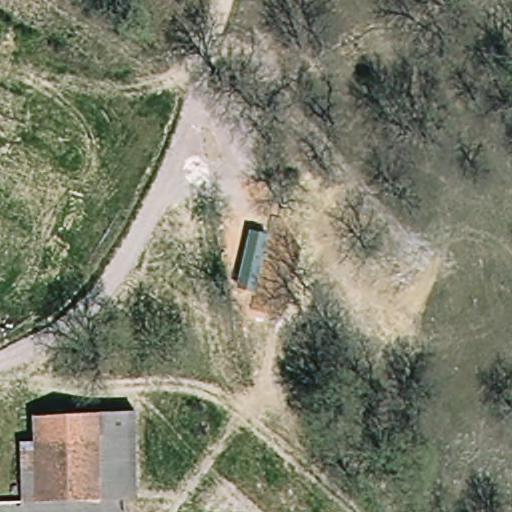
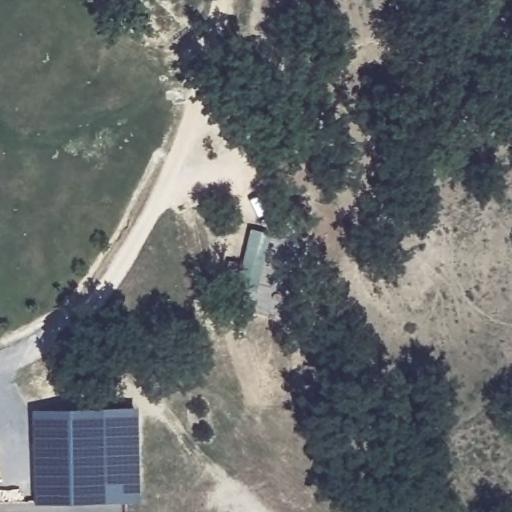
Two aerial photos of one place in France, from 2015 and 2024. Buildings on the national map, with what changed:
unchanged [(29,500),(28,467),(26,440),(41,439),(40,414),(135,409),(143,495),(29,500)]

